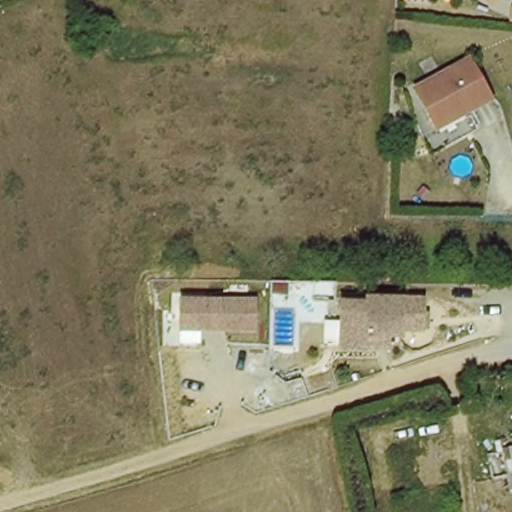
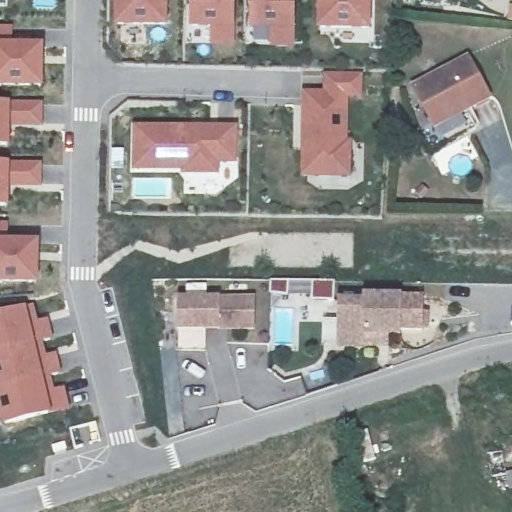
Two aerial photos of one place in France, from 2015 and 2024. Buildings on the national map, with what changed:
new [(111,23),(112,0),(166,0),(166,24),(111,23)]
new [(209,44),(209,27),(185,26),(186,0),(236,0),(235,45),(209,44)]
new [(270,47),(271,27),(247,27),(248,0),(295,0),(294,47),(270,47)]
new [(315,28),(315,0),(370,0),(369,28),(315,28)]
unchanged [(491,0),(497,0),(495,2),(491,0)]
new [(13,41),(41,42),(41,85),(0,85),(0,26),(13,26),(13,41)]
unchanged [(439,122),(418,88),(472,55),(495,94),(467,111),(442,127),(439,122)]
new [(323,90),(323,72),(363,73),(362,96),(349,96),(348,139),(352,139),(350,177),(301,177),(301,90),(323,90)]
new [(42,127),(9,127),(8,145),(0,146),(0,102),(43,102),(42,127)]
new [(237,124),(236,164),(219,163),(219,174),(132,170),(131,121),(237,124)]
new [(41,187),(8,187),(7,206),(0,206),(0,162),(41,162),(41,187)]
new [(9,238),(38,238),(36,282),(0,282),(0,222),(8,222),(9,238)]
unchanged [(364,344),(338,344),(339,299),(366,299),(366,294),(424,295),(424,326),(399,325),(399,331),(389,331),(388,344),(364,344)]
unchanged [(256,297),(257,332),(179,331),(181,296),(256,297)]
new [(36,319),(49,317),(53,338),(42,341),(46,355),(57,353),(61,375),(52,376),(55,389),(65,388),(69,409),(1,427),(0,423),(0,311),(32,304),(36,319)]
demolished [(506,493),(492,479),(502,471),(500,448),(512,445),(512,491),(506,493)]

